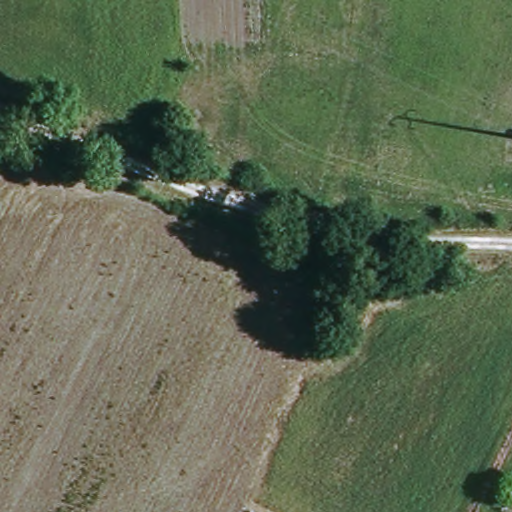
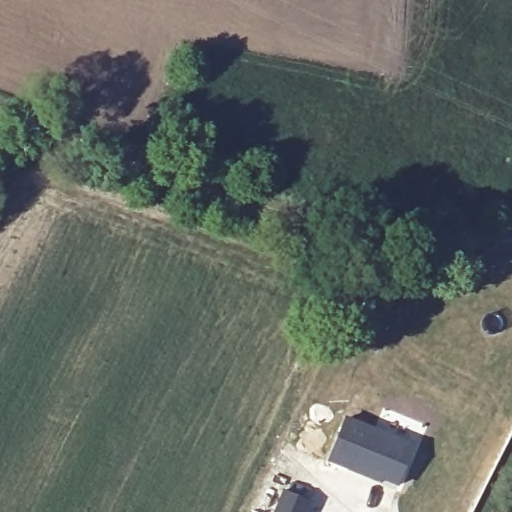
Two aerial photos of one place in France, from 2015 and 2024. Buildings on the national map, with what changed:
new [(345,419),(413,447),(398,486),(347,465),(345,468),(328,461),(345,419)]

